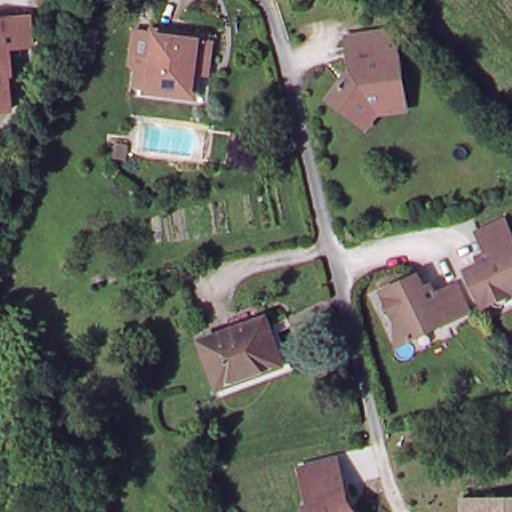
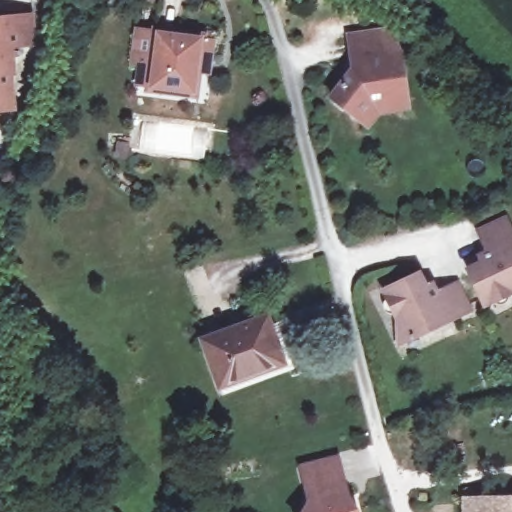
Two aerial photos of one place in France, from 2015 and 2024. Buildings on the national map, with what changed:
unchanged [(26,14),(28,41),(0,43),(7,106),(0,106),(0,16),(26,14)]
unchanged [(377,112),(367,123),(358,116),(331,95),(343,79),(347,83),(354,74),(347,35),(388,28),(392,53),(399,52),(405,94),(407,106),(377,112)]
unchanged [(153,65),(133,63),(137,31),(198,40),(192,94),(150,88),(153,65)]
unchanged [(114,153),(115,142),(127,144),(125,155),(114,153)]
unchanged [(512,235),(512,292),(483,305),(467,269),(481,263),(477,256),(486,252),(477,230),(505,218),(512,235)]
unchanged [(465,317),(393,350),(391,323),(378,294),(413,279),(420,294),(429,290),(432,297),(452,288),(465,317)]
unchanged [(203,340),(265,318),(272,335),(282,363),(273,366),(220,385),(203,340)]
unchanged [(318,506),(316,496),(312,497),(305,468),(341,459),(351,499),(347,500),(350,512),(359,509),(360,512),(307,512),(310,509),(318,506)]
unchanged [(512,497),(512,512),(499,512),(498,498),(512,497)]
unchanged [(469,512),(469,499),(498,498),(499,512),(469,512)]

